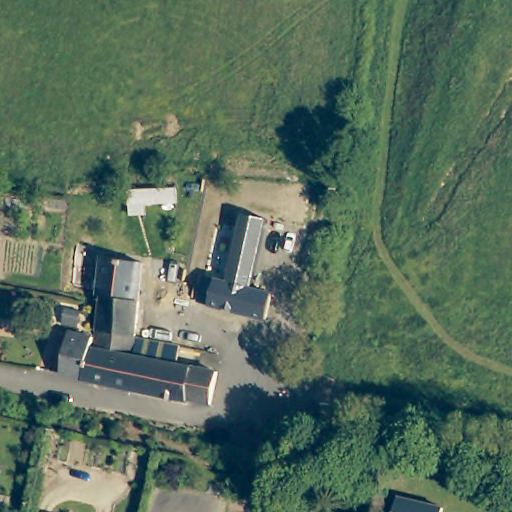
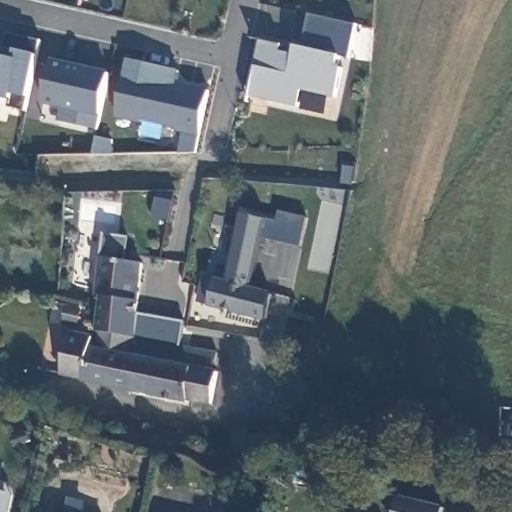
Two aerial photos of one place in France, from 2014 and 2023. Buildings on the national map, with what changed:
new [(336,97),(303,89),(298,105),(250,95),(263,38),(303,47),(311,12),(357,22),(336,97)]
new [(29,97),(26,109),(10,105),(13,99),(0,96),(0,41),(6,42),(9,32),(43,41),(39,54),(29,97)]
new [(98,129),(58,120),(61,107),(40,102),(51,58),(109,71),(98,129)]
new [(177,82),(208,89),(199,136),(177,131),(177,128),(143,121),(141,124),(114,117),(126,59),(181,71),(177,82)]
new [(302,246),(264,237),(252,288),(232,283),(227,282),(242,212),(268,217),(276,220),(279,210),(309,215),(302,246)]
unchanged [(100,347),(100,331),(102,300),(102,297),(96,296),(103,257),(144,262),(136,337),(135,355),(100,347)]
unchanged [(266,317),(198,302),(204,277),(232,283),(272,293),(266,317)]
new [(213,370),(193,366),(159,359),(138,355),(135,355),(136,337),(139,313),(184,322),(180,342),(219,351),(213,370)]
unchanged [(133,388),(84,380),(85,377),(62,372),(71,332),(94,336),(93,347),(100,347),(135,355),(138,355),(133,388)]
unchanged [(138,355),(159,359),(193,366),(218,371),(212,402),(189,397),(189,400),(133,388),(138,355)]
unchanged [(335,405),(335,421),(319,421),(320,404),(335,405)]
unchanged [(258,458),(247,457),(231,455),(235,426),(251,427),(262,429),(258,458)]
unchanged [(403,497),(447,509),(446,512),(400,512),(403,497)]

